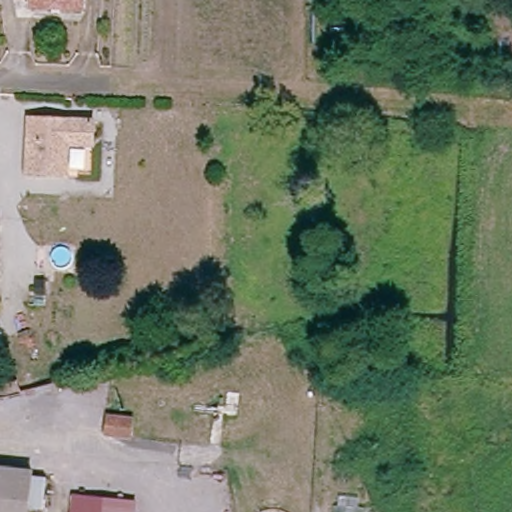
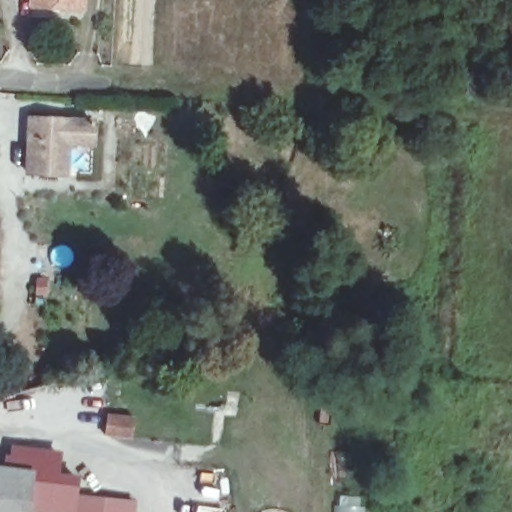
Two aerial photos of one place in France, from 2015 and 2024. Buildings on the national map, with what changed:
unchanged [(39,0),(88,0),(88,6),(67,4),(39,4),(39,0)]
unchanged [(28,116),(90,118),(90,145),(67,144),(67,169),(66,170),(30,170),(28,169),(28,116)]
unchanged [(104,421),(127,423),(125,442),(102,440),(104,421)]
new [(77,475),(74,496),(72,512),(26,512),(29,466),(5,465),(5,452),(12,453),(12,446),(61,450),(60,475),(77,475)]
unchanged [(29,466),(25,512),(0,512),(0,464),(29,466)]
unchanged [(134,501),(133,512),(72,512),(74,496),(134,501)]

